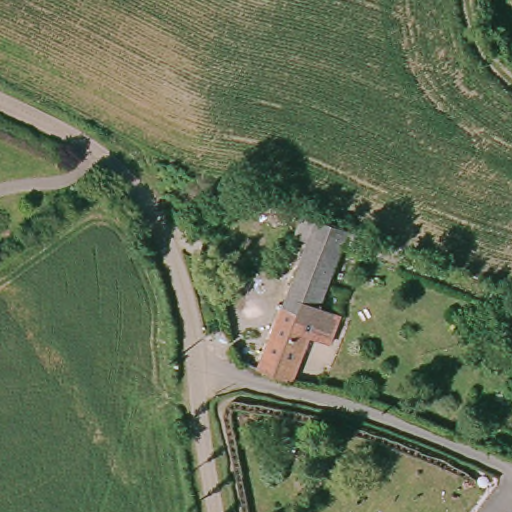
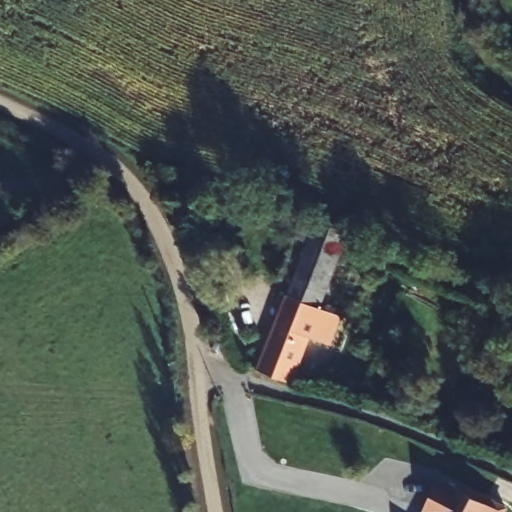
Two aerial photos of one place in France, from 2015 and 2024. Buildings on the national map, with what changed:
unchanged [(370,240),(362,260),(344,251),(332,279),(301,268),(309,245),(292,239),(303,212),(370,240)]
unchanged [(260,364),(301,268),(332,279),(290,376),(260,364)]
new [(425,511),(441,481),(487,506),(490,501),(505,509),(503,512),(425,512),(425,511)]
new [(487,506),(460,491),(462,486),(490,501),(487,506)]

